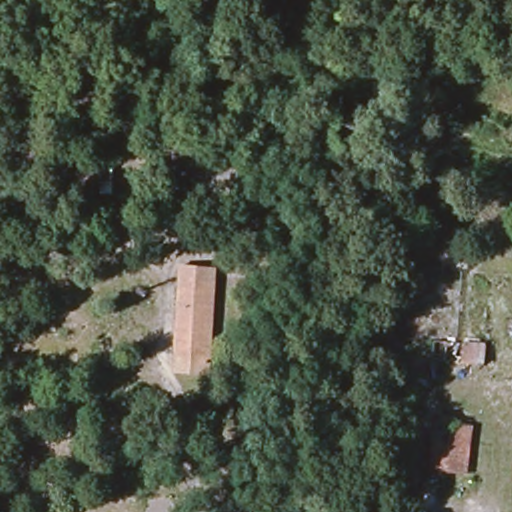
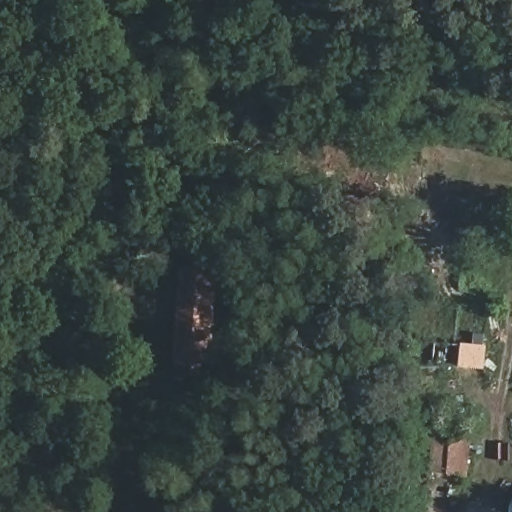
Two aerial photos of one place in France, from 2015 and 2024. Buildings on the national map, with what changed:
unchanged [(212,374),(174,373),(180,265),(218,268),(219,289),(188,287),(182,350),(214,353),(212,374)]
unchanged [(182,350),(188,287),(219,289),(214,353),(182,350)]
unchanged [(457,366),(456,345),(490,345),(489,366),(457,366)]
unchanged [(469,472),(433,469),(438,422),(474,425),(469,472)]

